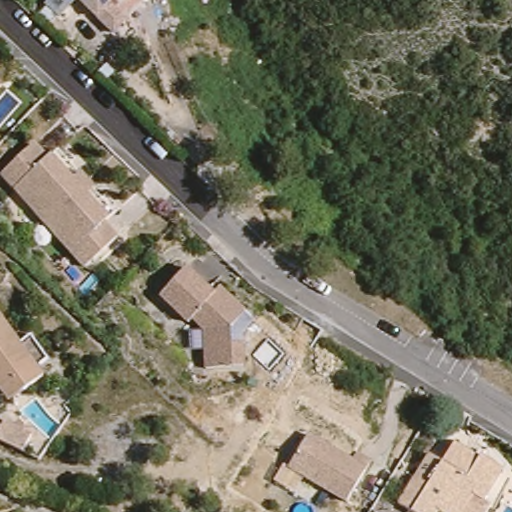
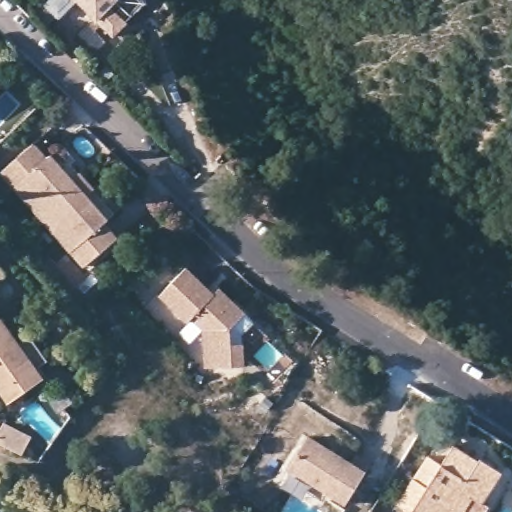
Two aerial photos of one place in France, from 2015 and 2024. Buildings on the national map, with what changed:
unchanged [(53,11),(48,5),(53,0),(76,0),(59,16),(47,29),(41,23),(53,11)]
unchanged [(113,34),(79,0),(143,0),(146,2),(113,34)]
unchanged [(0,93),(0,90),(1,91),(0,93)]
unchanged [(33,144),(47,159),(58,149),(115,213),(104,223),(118,238),(85,267),(1,173),(33,144)]
unchanged [(233,344),(233,367),(196,368),(194,329),(183,318),(179,322),(151,296),(176,268),(204,294),(209,289),(220,300),(235,314),(221,329),(221,344),(233,344)]
unchanged [(31,341),(48,366),(36,374),(43,384),(9,407),(0,394),(0,323),(19,350),(31,341)]
unchanged [(31,437),(23,454),(0,442),(0,429),(3,423),(31,437)]
unchanged [(357,469),(361,461),(376,470),(351,509),(294,474),(314,442),(357,469)]
unchanged [(399,505),(429,456),(442,465),(454,445),(469,455),(479,461),(481,458),(502,472),(483,503),(477,512),(410,512),(399,505)]

